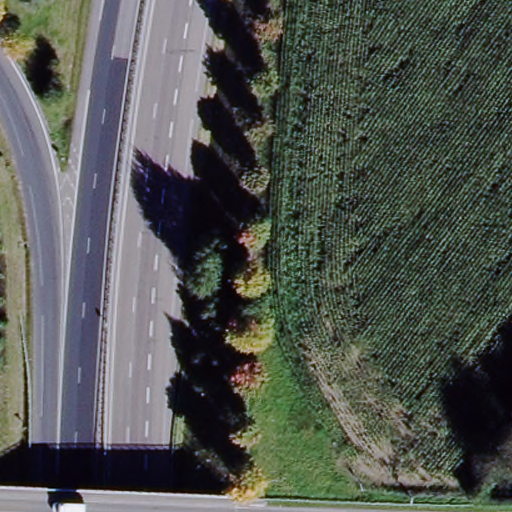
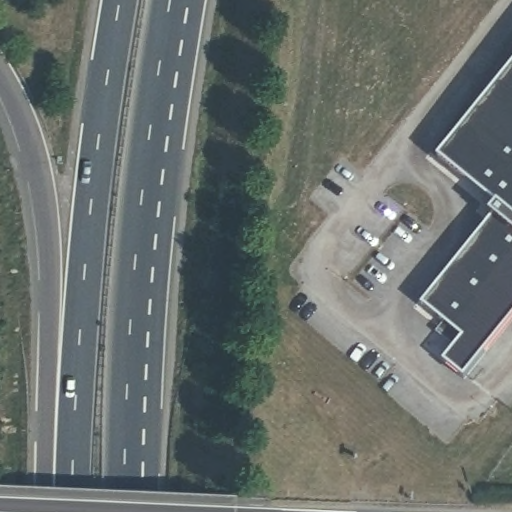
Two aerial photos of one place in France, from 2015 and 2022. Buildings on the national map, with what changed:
new [(466,378),(444,360),(454,347),(439,333),(447,326),(424,305),(497,220),(490,215),(498,206),(440,158),(512,70),(512,322),(466,378)]

